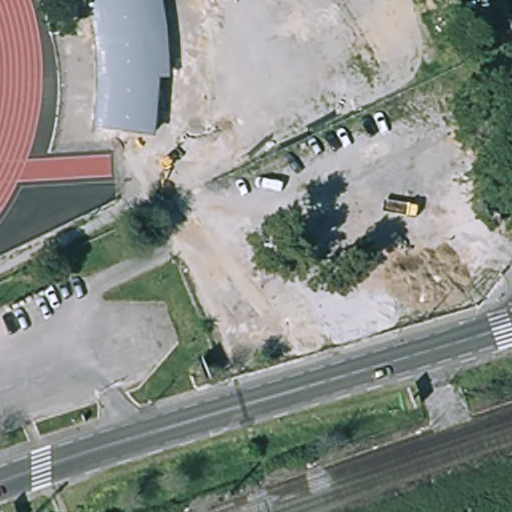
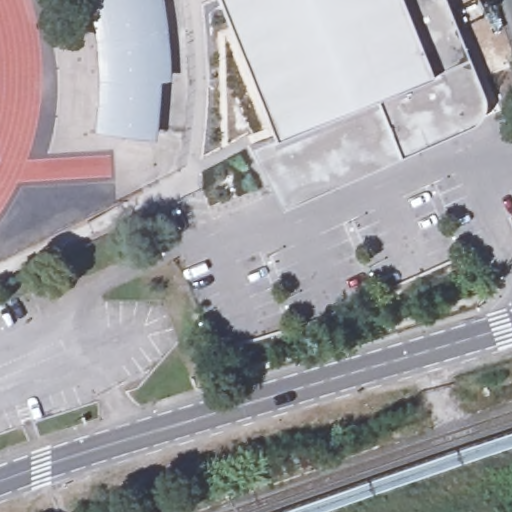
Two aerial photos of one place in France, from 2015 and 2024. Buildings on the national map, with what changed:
unchanged [(167,50),(168,79),(159,81),(155,120),(154,138),(94,127),(97,87),(97,57),(94,34),(90,9),(88,0),(162,0),(165,24),(167,50)]
new [(446,0),(481,89),(484,99),(483,107),(479,116),(473,122),(463,127),(398,155),(280,207),(250,146),(275,136),(220,0),(446,0)]
demolished [(512,146),(510,147),(498,119),(512,113),(512,146)]

